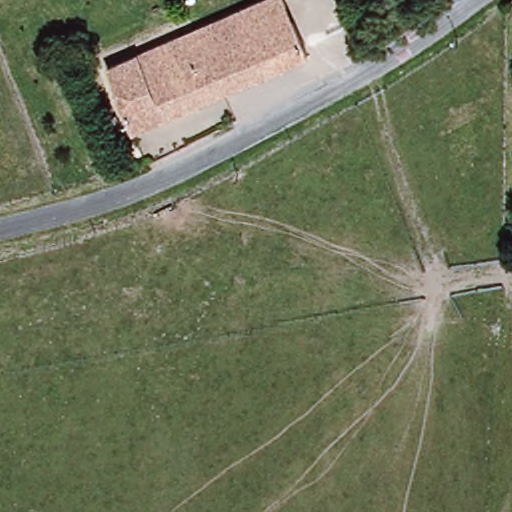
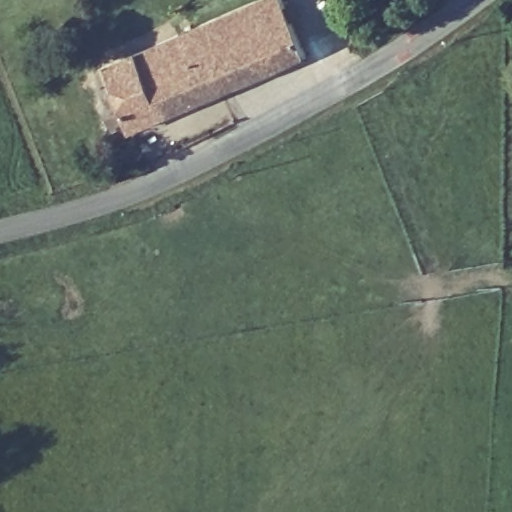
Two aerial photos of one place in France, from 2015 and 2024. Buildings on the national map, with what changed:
unchanged [(136,128),(110,69),(271,0),(284,0),(307,55),(136,128)]

